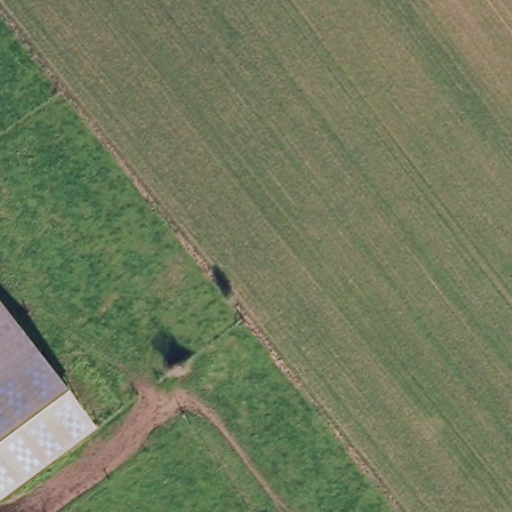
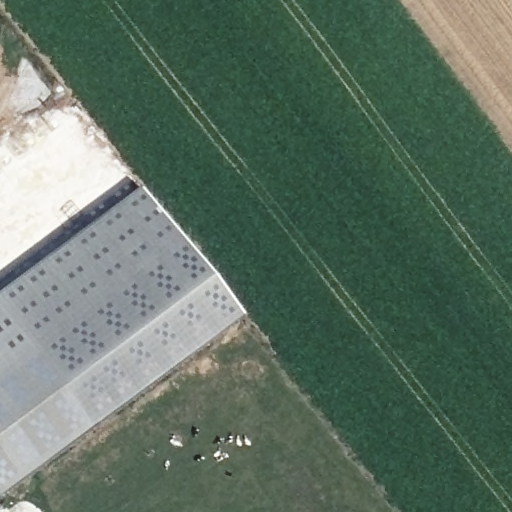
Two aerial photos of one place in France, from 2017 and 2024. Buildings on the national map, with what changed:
new [(0,294),(136,195),(240,327),(0,498),(0,294)]
demolished [(100,429),(0,501),(0,375),(39,348),(100,429)]

